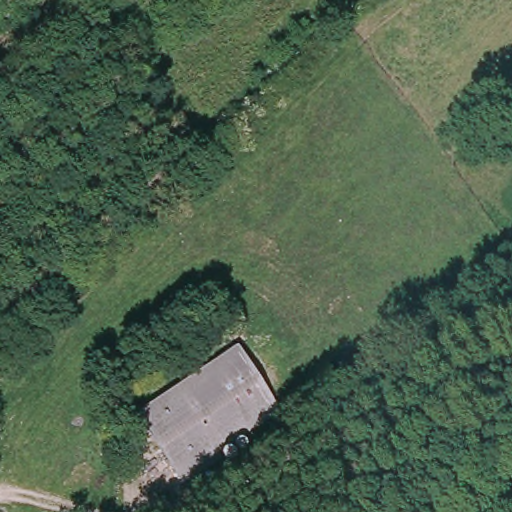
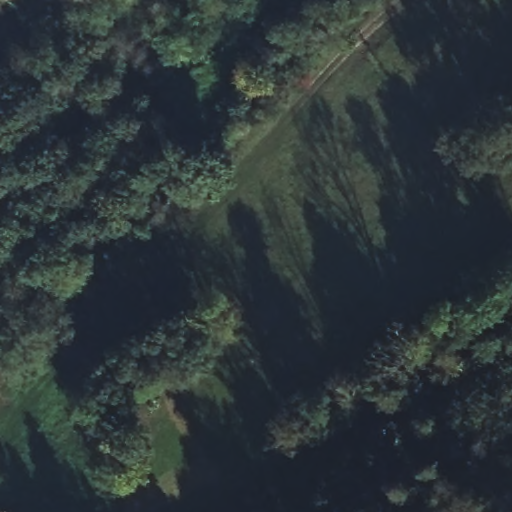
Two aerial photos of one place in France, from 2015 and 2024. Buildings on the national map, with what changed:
demolished [(279,412),(183,483),(137,417),(236,348),(279,412)]

